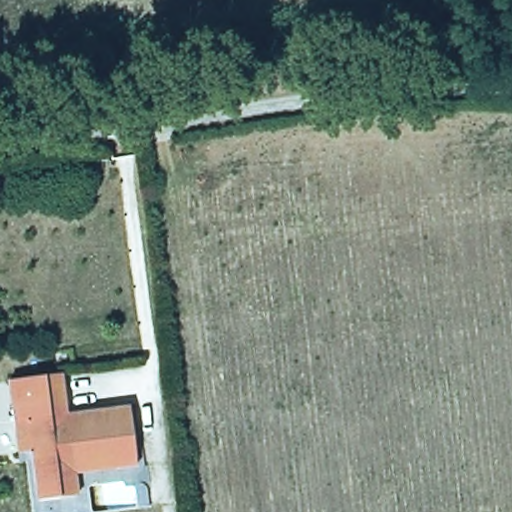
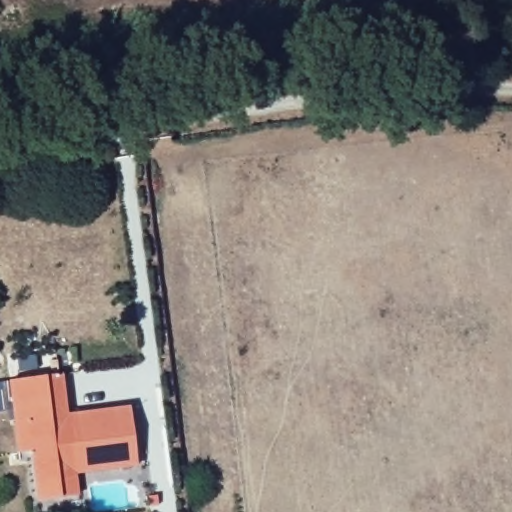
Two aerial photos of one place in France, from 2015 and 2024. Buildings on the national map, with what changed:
unchanged [(78,494),(38,499),(32,451),(18,452),(10,379),(62,374),(68,414),(129,408),(138,465),(118,468),(74,474),(78,494)]

